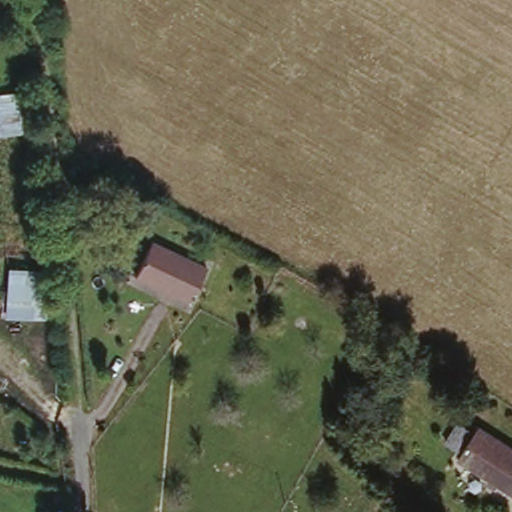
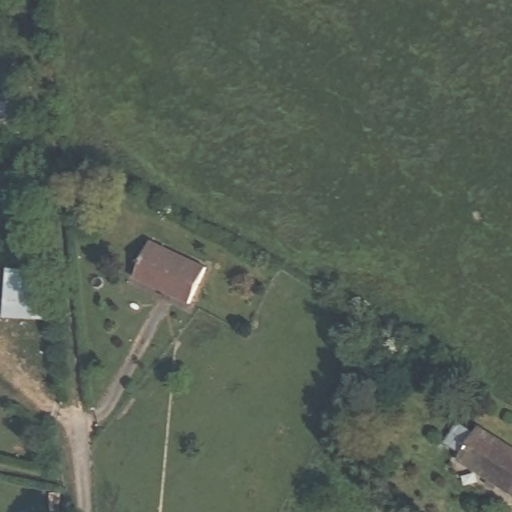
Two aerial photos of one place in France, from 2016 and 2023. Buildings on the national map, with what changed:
unchanged [(0,120),(0,91),(18,89),(22,121),(1,124),(0,120)]
unchanged [(209,266),(191,304),(135,278),(154,241),(209,266)]
unchanged [(9,280),(47,282),(46,313),(7,311),(9,280)]
unchanged [(512,448),(512,494),(460,461),(481,428),(512,448)]
unchanged [(396,512),(397,511),(398,512),(396,512)]

